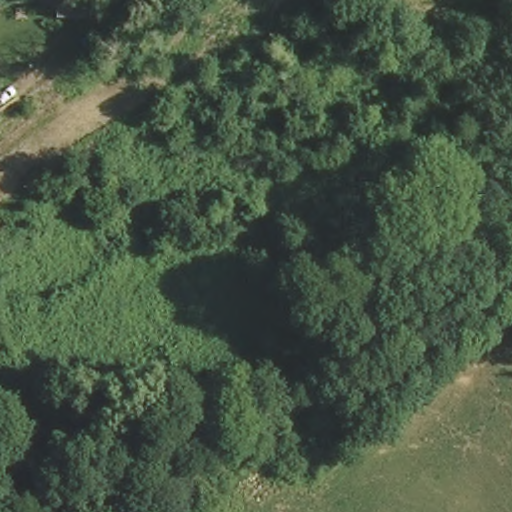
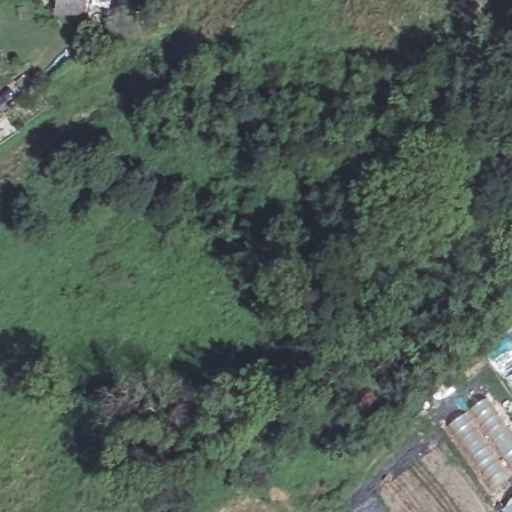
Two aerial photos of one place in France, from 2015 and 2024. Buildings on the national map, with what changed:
unchanged [(59,3),(85,3),(85,19),(60,19),(59,3)]
new [(486,397),(512,436),(512,477),(491,491),(447,424),(486,397)]
new [(505,512),(501,506),(512,499),(512,512),(505,512)]

